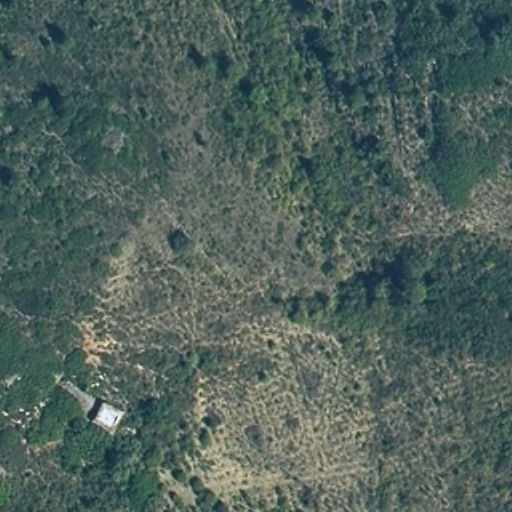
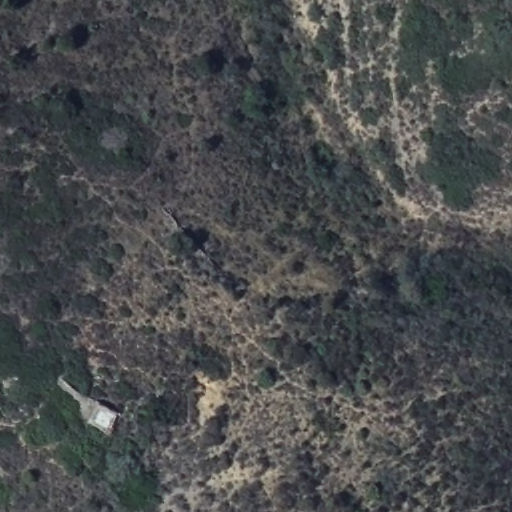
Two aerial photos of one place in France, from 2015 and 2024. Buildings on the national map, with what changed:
unchanged [(96,399),(122,411),(114,425),(91,415),(96,399)]

